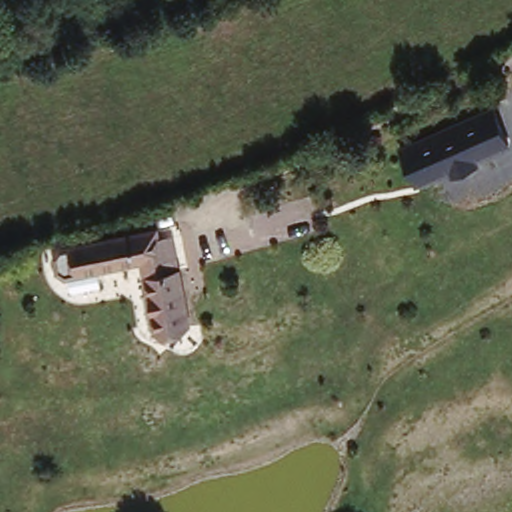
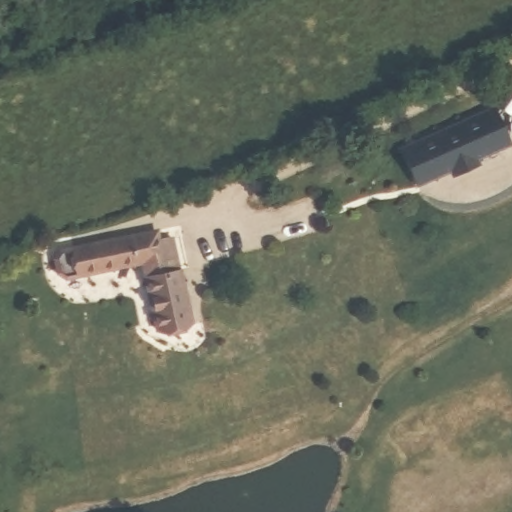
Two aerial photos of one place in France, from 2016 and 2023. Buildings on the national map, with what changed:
unchanged [(478,159),(480,165),(452,178),(450,172),(416,188),(398,144),(492,104),(510,146),(478,159)]
unchanged [(155,329),(140,263),(77,276),(69,239),(161,219),(165,230),(176,227),(196,319),(155,329)]

